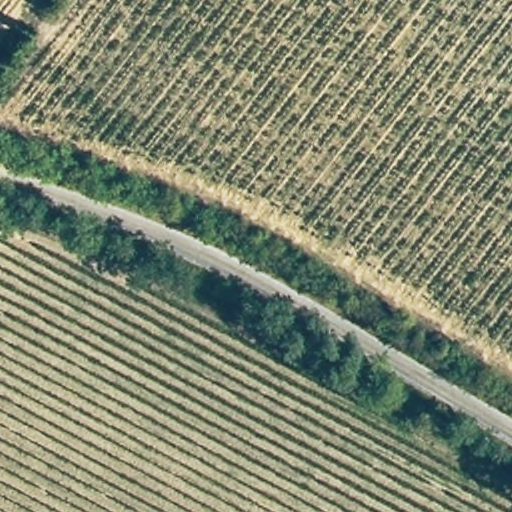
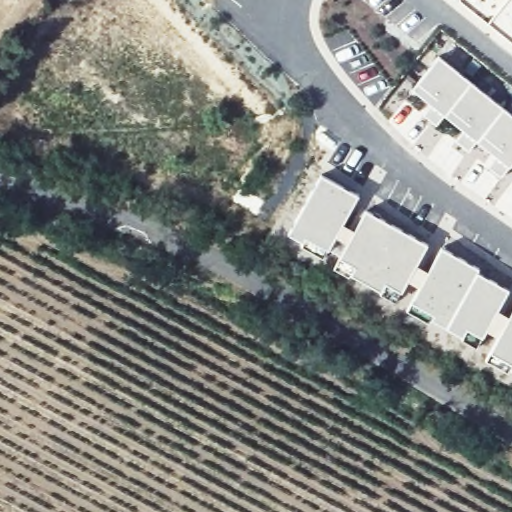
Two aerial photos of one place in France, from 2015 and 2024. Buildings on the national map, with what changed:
new [(470,83),(436,126),(422,116),(436,99),(417,83),(438,56),(470,83)]
new [(436,99),(431,105),(412,90),(417,83),(436,99)]
new [(470,83),(503,109),(468,152),(455,141),(468,125),(449,109),(470,83)]
new [(449,109),(468,125),(463,131),(444,116),(449,109)]
new [(481,135),(503,109),(512,116),(512,164),(501,178),(487,167),(501,151),(496,156),(476,141),(481,135)]
new [(512,166),(511,165),(512,164),(512,166)]
new [(300,248),(304,239),(301,243),(286,235),(318,177),(356,198),(327,251),(322,260),(300,248)]
new [(363,212),(339,257),(327,250),(351,205),(363,212)]
new [(380,292),(349,275),(353,267),(338,258),(363,212),(425,246),(400,292),(394,303),(378,295),(385,284),(380,292)]
new [(425,246),(437,252),(418,287),(406,281),(425,246)]
new [(440,249),(477,270),(475,273),(507,291),(482,337),(466,329),(462,337),(430,320),(432,315),(427,324),(405,311),(410,302),(440,249)]
new [(353,267),(348,278),(332,269),(338,258),(353,267)]
new [(486,330),(507,291),(512,293),(512,310),(497,336),(486,330)]
new [(485,360),(489,351),(512,310),(512,376),(507,373),(485,360)]
new [(482,337),(475,348),(460,340),(466,329),(482,337)]

